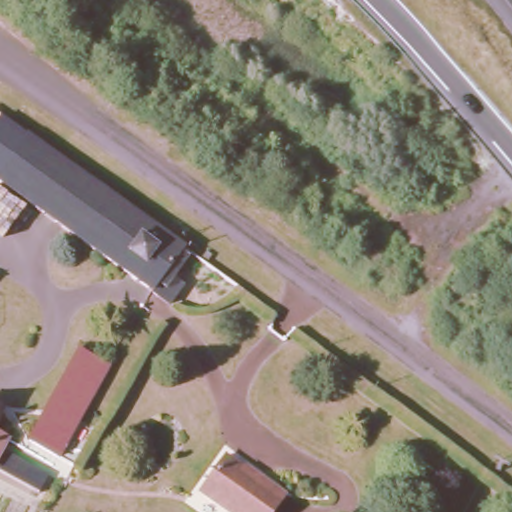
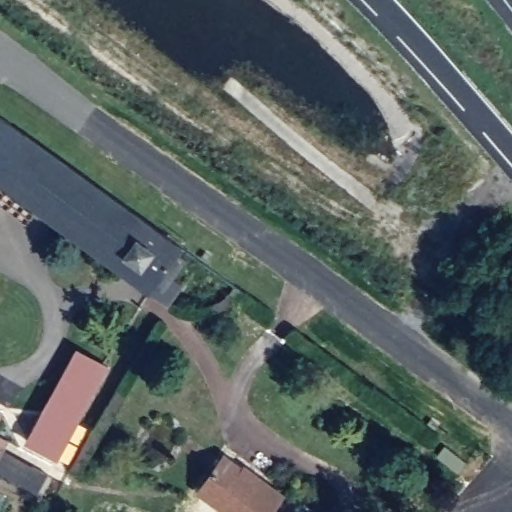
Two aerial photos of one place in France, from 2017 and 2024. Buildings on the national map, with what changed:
unchanged [(0,111),(17,123),(125,201),(92,245),(0,180),(0,147),(0,111)]
unchanged [(162,268),(172,276),(159,293),(142,281),(92,245),(125,201),(177,237),(167,249),(172,254),(162,268)]
unchanged [(62,450),(33,435),(82,348),(108,362),(113,365),(62,450)]
unchanged [(47,497),(2,472),(0,471),(0,407),(12,413),(1,434),(18,443),(13,452),(58,477),(47,497)]
unchanged [(225,462),(257,484),(259,480),(289,502),(282,512),(224,512),(202,496),(225,462)]

